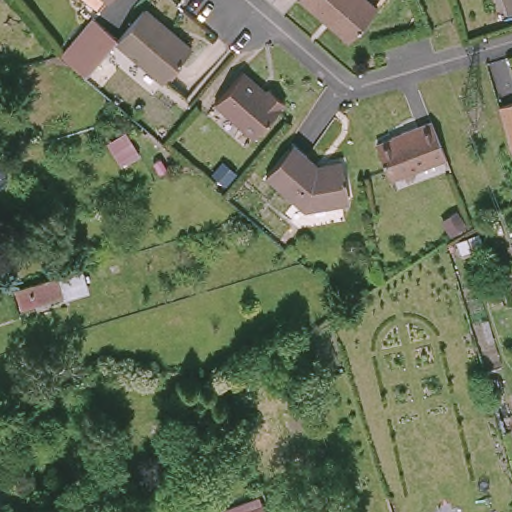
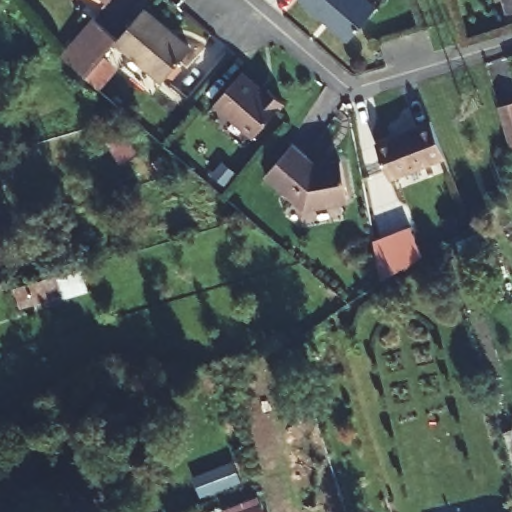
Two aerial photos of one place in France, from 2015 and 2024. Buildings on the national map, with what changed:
unchanged [(108,0),(110,0),(109,1),(108,0)]
unchanged [(355,51),(305,9),(309,5),(303,0),(362,0),(382,18),(355,51)]
unchanged [(502,0),(512,0),(512,9),(505,11),(502,0)]
unchanged [(116,39),(144,6),(194,49),(167,81),(115,40),(116,39)]
unchanged [(115,40),(82,78),(57,56),(90,17),(116,39),(115,40)]
unchanged [(241,68),(265,88),(267,85),(284,100),(254,136),(212,101),(241,68)]
unchanged [(448,153),(390,176),(377,144),(404,133),(402,130),(434,116),(448,153)]
unchanged [(291,142),(321,166),(325,161),(342,160),(349,193),(344,202),(307,208),(266,174),(291,142)]
new [(374,242),(407,226),(423,259),(382,279),(376,247),(374,242)]
unchanged [(54,274),(59,293),(17,306),(12,287),(54,274)]
unchanged [(225,508),(262,496),(267,512),(227,512),(225,508)]

